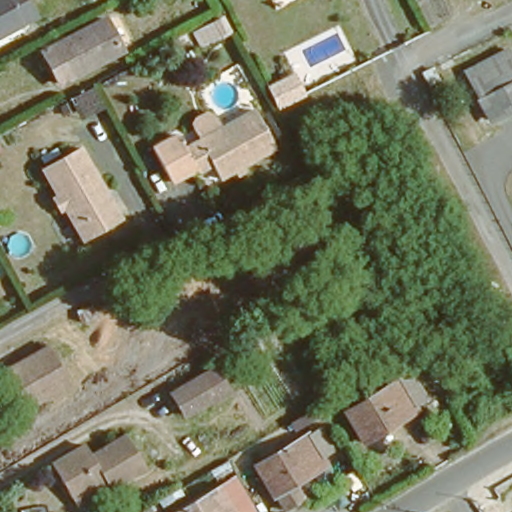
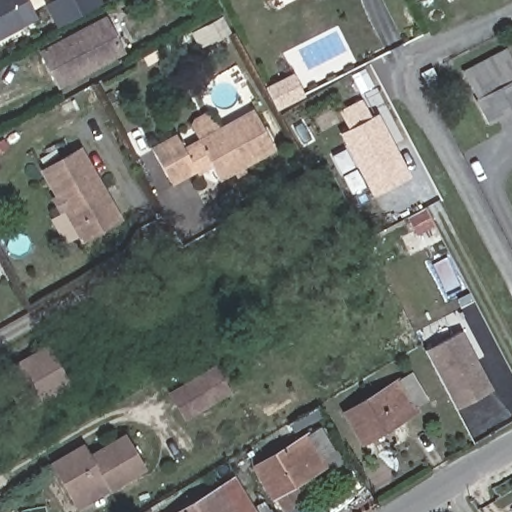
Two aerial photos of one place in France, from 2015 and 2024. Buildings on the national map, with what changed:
new [(0,38),(0,0),(27,0),(37,20),(25,26),(0,38)]
new [(46,4),(54,0),(102,0),(104,2),(57,26),(46,4)]
unchanged [(109,44),(46,79),(29,46),(48,36),(51,41),(94,18),(109,44)]
unchanged [(480,123),(455,68),(506,40),(512,52),(512,107),(480,123)]
new [(295,76),(306,96),(301,99),(281,109),(270,90),(290,80),(295,76)]
new [(371,116),(378,113),(410,176),(372,197),(340,134),(348,129),(338,110),(362,99),(371,116)]
unchanged [(217,169),(211,159),(195,168),(192,164),(170,177),(156,156),(151,146),(174,131),(180,141),(182,145),(230,116),(251,105),(264,126),(270,138),(273,142),(220,174),(217,169)]
unchanged [(36,161),(74,140),(98,182),(61,205),(36,161)]
unchanged [(81,241),(76,230),(61,205),(98,182),(113,208),(119,219),(81,241)]
new [(456,409),(423,349),(461,330),(492,390),(456,409)]
unchanged [(16,404),(0,376),(0,361),(41,337),(64,377),(16,404)]
unchanged [(229,385),(185,411),(173,389),(214,364),(229,385)]
unchanged [(420,402),(407,410),(408,412),(354,442),(337,411),(404,374),(420,402)]
unchanged [(324,459),(289,480),(299,496),(280,506),(253,459),(305,428),(324,459)]
unchanged [(72,494),(54,462),(88,443),(93,450),(127,431),(146,463),(111,484),(78,503),(72,494)]
unchanged [(210,483),(229,512),(164,512),(210,483)]

